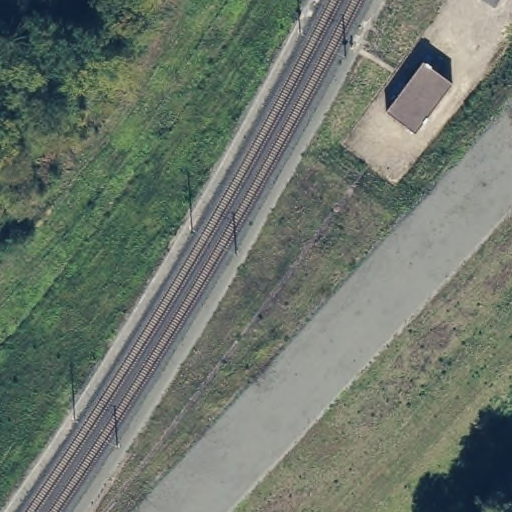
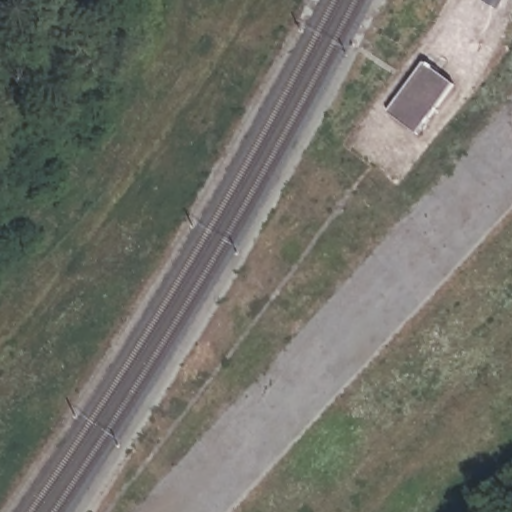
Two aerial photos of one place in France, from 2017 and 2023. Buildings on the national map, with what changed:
unchanged [(415,132),(387,110),(425,63),(452,83),(415,132)]

